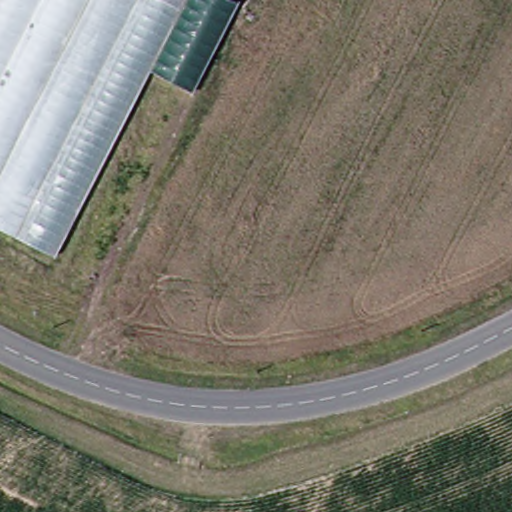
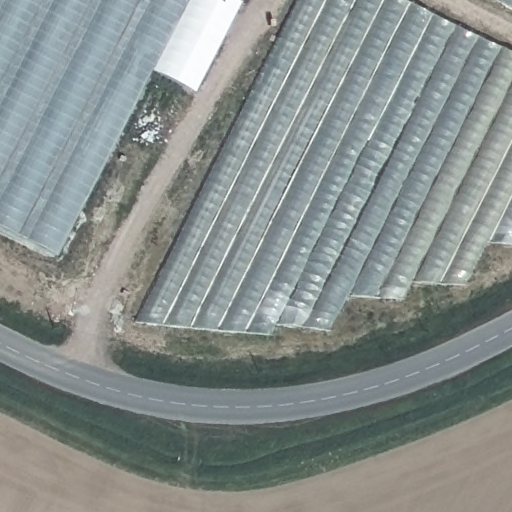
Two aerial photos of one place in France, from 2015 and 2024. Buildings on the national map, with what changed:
unchanged [(61,259),(0,228),(0,0),(195,0),(61,259)]
new [(512,53),(512,245),(486,242),(465,285),(410,282),(400,300),(345,296),(328,332),(274,324),(268,335),(132,322),(295,0),(406,0),(512,53)]
new [(157,73),(195,0),(233,0),(237,2),(191,91),(157,73)]
new [(512,9),(495,0),(512,0),(512,9)]

